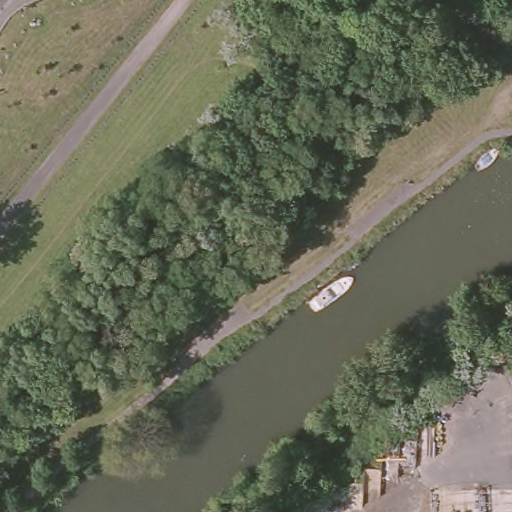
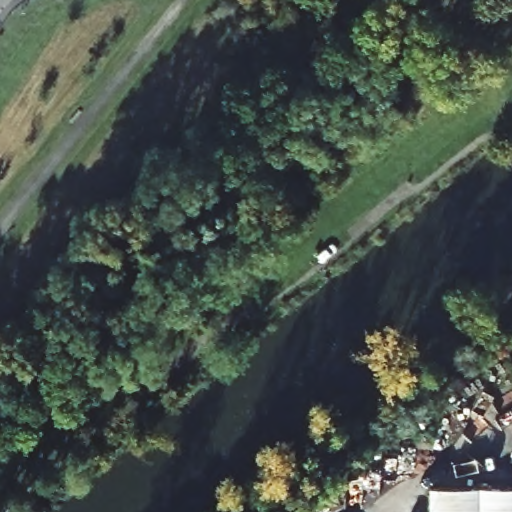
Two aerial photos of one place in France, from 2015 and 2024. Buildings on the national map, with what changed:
new [(431,490),(512,489),(512,512),(432,512),(431,490)]

